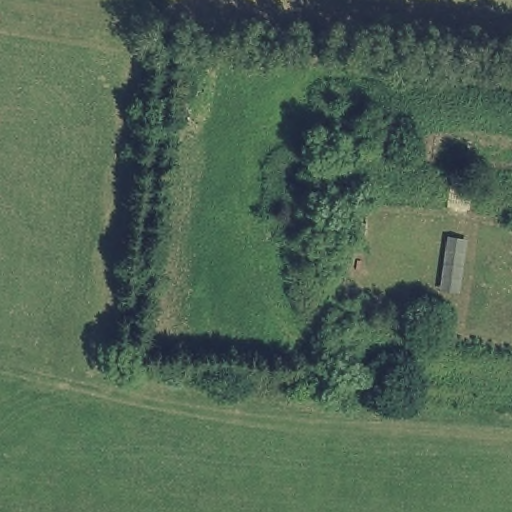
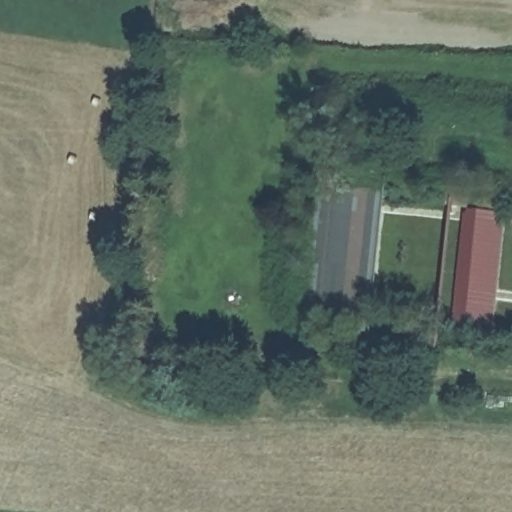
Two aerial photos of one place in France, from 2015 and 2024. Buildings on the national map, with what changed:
unchanged [(319,174),(388,180),(372,336),(303,322),(319,174)]
new [(455,334),(468,210),(507,214),(494,338),(455,334)]

